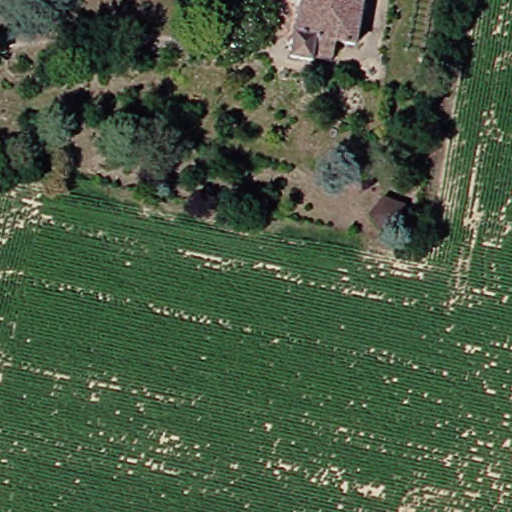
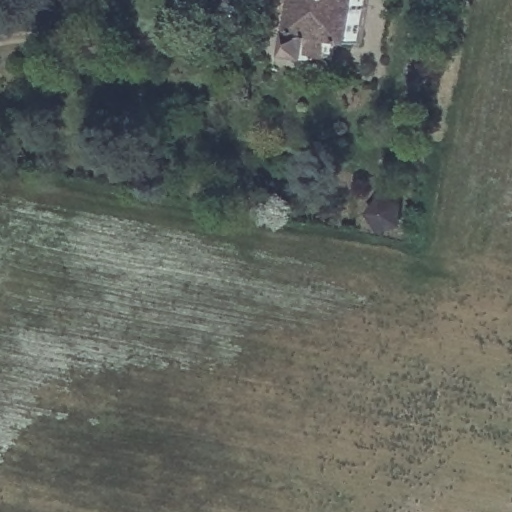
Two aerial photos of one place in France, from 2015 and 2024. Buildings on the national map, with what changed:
unchanged [(294,0),(359,0),(354,26),(319,18),(313,46),(286,40),(294,0)]

